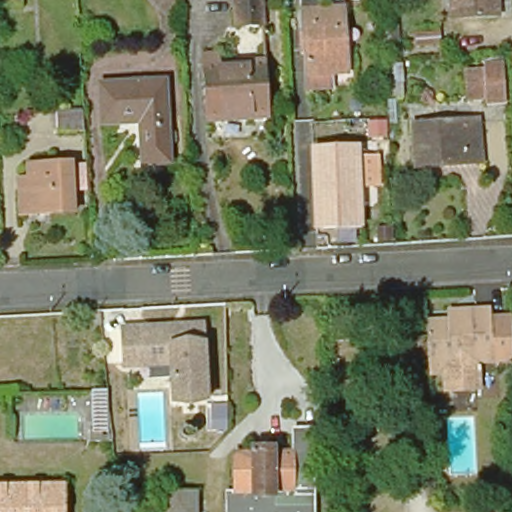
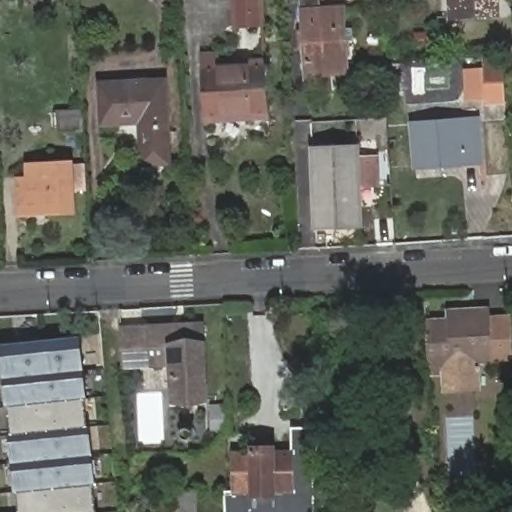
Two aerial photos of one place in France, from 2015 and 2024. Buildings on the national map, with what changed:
unchanged [(20,9),(0,10),(0,0),(19,0),(20,9)]
unchanged [(232,0),(260,0),(262,29),(234,31),(232,0)]
unchanged [(450,0),(498,0),(499,17),(451,20),(450,0)]
unchanged [(337,78),(297,81),(294,17),(340,14),(342,63),(343,78),(337,78)]
unchanged [(482,61),(501,60),(502,100),(484,100),(482,61)]
unchanged [(202,67),(264,63),(268,118),(205,122),(202,67)]
unchanged [(101,86),(162,84),(167,164),(142,165),(140,124),(103,126),(101,86)]
unchanged [(82,112),(84,133),(56,134),(55,113),(82,112)]
unchanged [(412,122),(478,118),(482,162),(414,167),(412,122)]
unchanged [(358,158),(382,157),(383,193),(360,194),(361,226),(312,228),(309,146),(358,144),(357,146),(358,158)]
unchanged [(72,163),(75,213),(20,216),(18,188),(17,181),(28,180),(27,165),(72,163)]
demolished [(98,312),(99,324),(80,325),(79,313),(98,312)]
unchanged [(477,387),(449,389),(448,374),(428,375),(425,325),(447,323),(447,315),(457,314),(490,312),(491,320),(510,318),(511,362),(475,365),(477,387)]
unchanged [(203,325),(207,404),(172,406),(169,368),(124,370),(121,329),(203,325)]
new [(14,492),(7,436),(12,436),(10,406),(5,406),(0,356),(0,345),(81,336),(89,398),(84,398),(87,426),(91,426),(97,483),(94,483),(97,512),(20,512),(17,491),(14,492)]
unchanged [(198,442),(197,442),(197,443),(196,444),(195,444),(194,445),(192,445),(191,446),(190,446),(189,445),(187,445),(186,444),(185,444),(184,443),(183,443),(182,442),(182,441),(181,440),(181,439),(180,438),(180,437),(180,436),(179,435),(179,434),(179,433),(180,432),(180,431),(180,430),(181,429),(182,428),(182,427),(183,426),(184,425),(185,425),(186,425),(187,425),(188,424),(189,424),(190,424),(192,424),(192,425),(194,425),(195,425),(196,426),(197,427),(198,428),(199,429),(200,430),(200,431),(200,432),(201,433),(201,434),(201,435),(201,436),(200,438),(200,439),(200,440),(199,441),(198,442)]
unchanged [(318,426),(319,512),(232,512),(232,492),(240,492),(256,492),(256,496),(279,496),(280,492),(281,492),(296,492),(297,455),(297,427),(318,426)]
unchanged [(296,492),(281,492),(280,492),(279,496),(256,496),(256,492),(240,492),(240,454),(256,454),(257,448),(280,449),(280,454),(297,455),(296,492)]
demolished [(66,485),(66,512),(0,512),(0,485),(66,485)]
unchanged [(196,492),(196,512),(159,512),(158,492),(196,492)]

